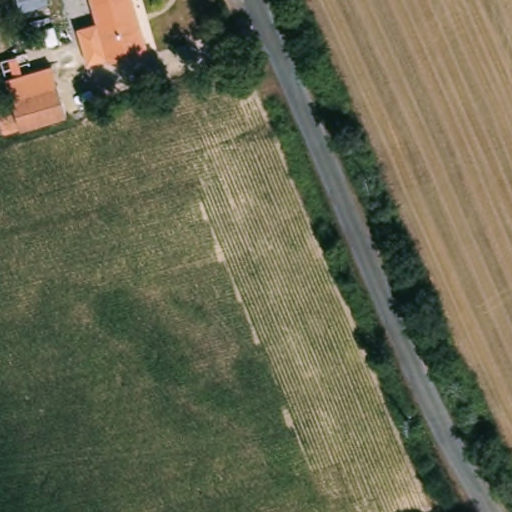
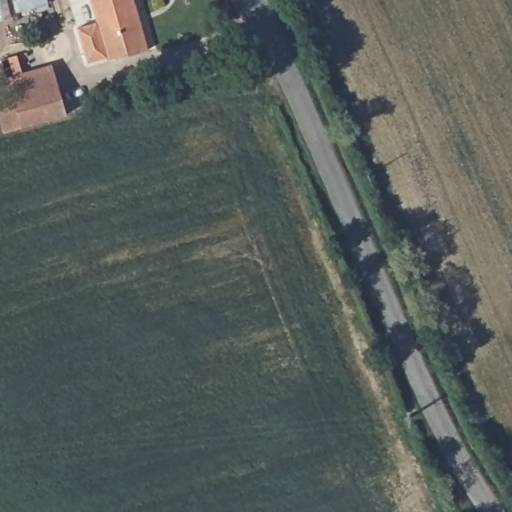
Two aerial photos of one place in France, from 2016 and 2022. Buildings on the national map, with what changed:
unchanged [(147,50),(109,60),(91,0),(133,0),(147,50)]
unchanged [(130,84),(100,92),(97,78),(127,70),(130,84)]
unchanged [(65,116),(23,127),(15,99),(62,85),(70,107),(65,116)]
unchanged [(3,134),(0,135),(0,121),(3,134)]

